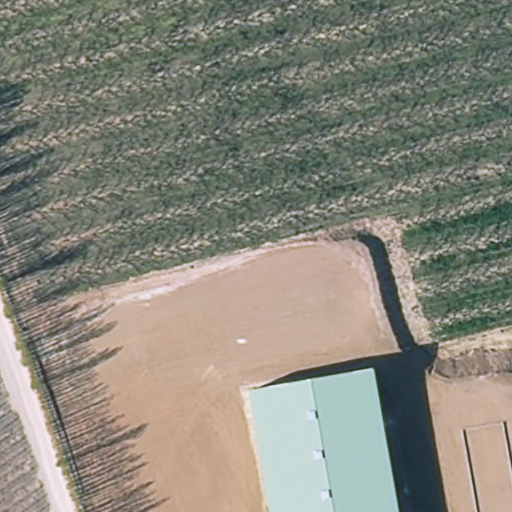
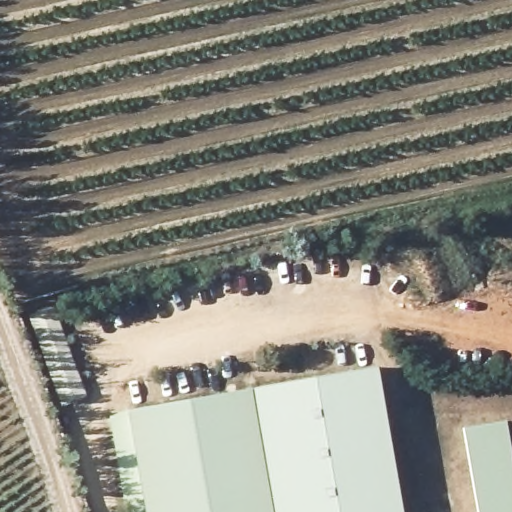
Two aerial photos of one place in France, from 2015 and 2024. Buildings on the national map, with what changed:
new [(62,408),(28,315),(53,306),(87,397),(62,408)]
unchanged [(251,390),(378,369),(403,512),(272,512),(251,390)]
new [(109,415),(126,411),(251,390),(272,512),(127,512),(109,415)]
new [(461,429),(505,422),(512,458),(512,512),(477,512),(461,429)]

